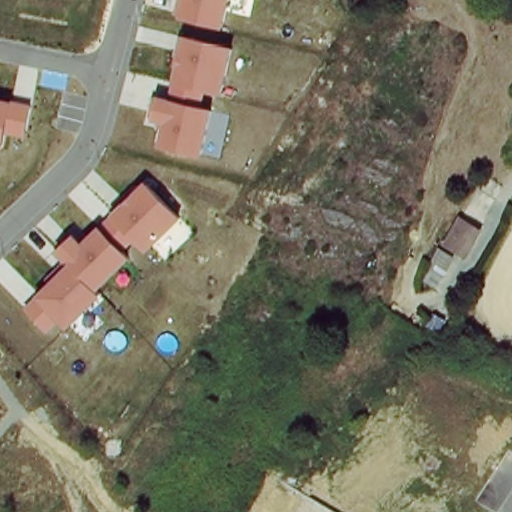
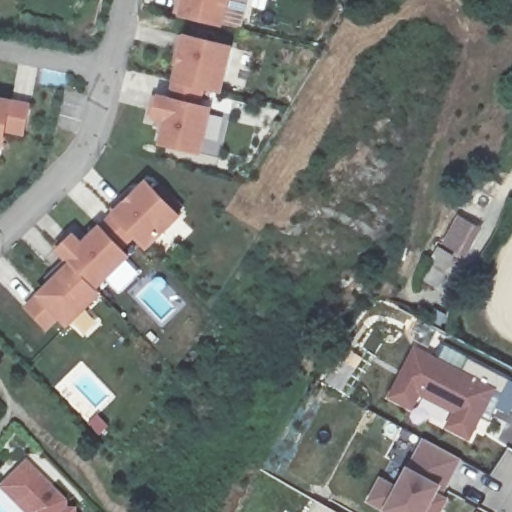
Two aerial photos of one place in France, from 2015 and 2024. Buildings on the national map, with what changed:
unchanged [(227,0),(222,24),(183,15),(187,0),(227,0)]
unchanged [(162,145),(168,122),(154,118),(160,95),(171,97),(186,36),(235,47),(223,96),(207,92),(202,106),(214,109),(203,156),(162,145)]
unchanged [(0,148),(0,97),(11,99),(33,104),(26,133),(10,130),(5,149),(0,148)]
unchanged [(137,238),(126,249),(133,257),(98,289),(105,295),(70,329),(37,295),(69,264),(58,250),(76,233),(85,242),(114,216),(148,181),(183,217),(149,249),(137,238)]
unchanged [(480,231),(467,263),(458,258),(437,246),(454,219),(477,230),(480,231)]
new [(493,422),(484,417),(470,444),(448,432),(456,417),(421,399),(413,414),(391,403),(416,353),(463,377),(470,363),(503,380),(512,385),(493,422)]
new [(443,512),(380,512),(370,506),(381,484),(399,494),(426,444),(461,464),(444,494),(440,492),(436,499),(447,505),(443,512)]
new [(26,462),(69,506),(67,507),(73,512),(20,512),(0,490),(0,488),(26,462)]

